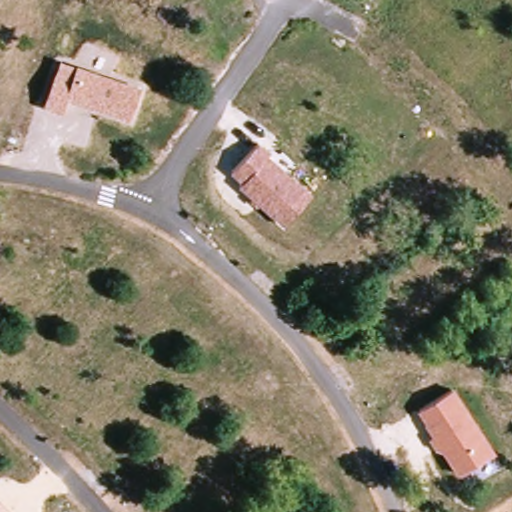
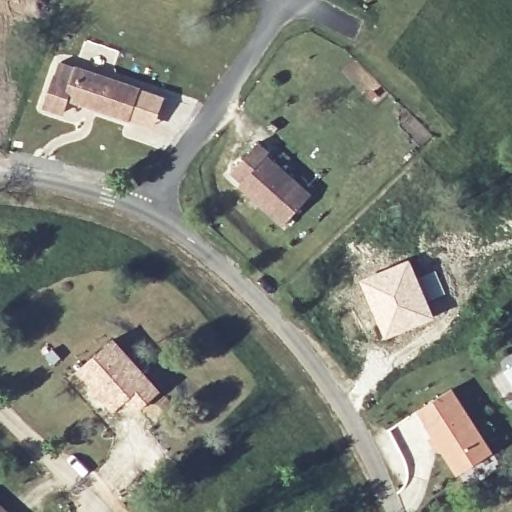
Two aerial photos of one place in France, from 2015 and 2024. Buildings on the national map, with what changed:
unchanged [(129,119),(71,98),(65,113),(45,107),(62,59),(142,84),(129,119)]
unchanged [(284,222),(240,184),(243,181),(233,171),(262,141),(313,191),(284,222)]
new [(410,256),(420,276),(435,269),(438,281),(425,286),(436,316),(384,339),(357,280),(410,256)]
new [(77,372),(114,337),(161,390),(136,411),(126,398),(112,410),(77,372)]
unchanged [(494,453),(458,476),(417,411),(454,388),(494,453)]
unchanged [(0,512),(0,504),(9,512),(0,512)]

